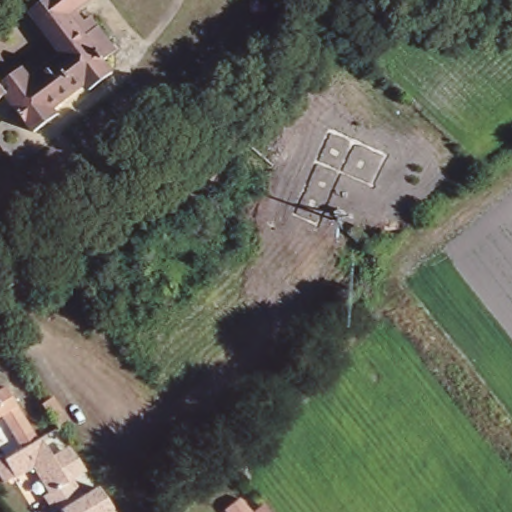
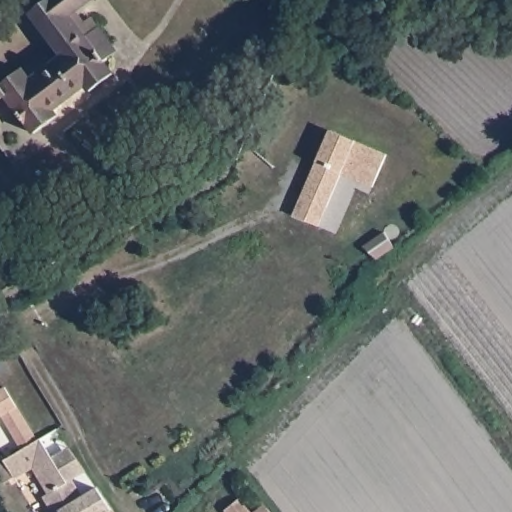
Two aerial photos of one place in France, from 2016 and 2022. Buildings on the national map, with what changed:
unchanged [(26,18),(49,0),(89,0),(91,2),(64,22),(74,35),(87,24),(112,58),(99,69),(107,79),(83,97),(79,92),(50,114),(54,119),(31,137),(22,126),(20,127),(11,115),(13,114),(3,100),(0,103),(0,87),(16,74),(49,49),(26,18)]
new [(330,130),(387,154),(372,187),(341,173),(318,226),(293,215),(330,130)]
unchanged [(397,245),(396,246),(377,259),(363,245),(382,233),(397,245)]
unchanged [(2,413),(0,415),(0,389),(7,385),(12,395),(41,441),(40,441),(25,450),(2,413)]
unchanged [(66,423),(57,428),(41,403),(51,397),(66,423)]
unchanged [(75,476),(87,494),(58,512),(54,512),(44,495),(51,491),(35,466),(14,479),(8,470),(0,475),(0,455),(2,454),(7,461),(13,457),(25,450),(40,441),(41,441),(45,438),(70,479),(75,476)]
unchanged [(70,479),(52,451),(67,441),(85,469),(75,476),(70,479)]
unchanged [(116,512),(63,512),(62,509),(87,494),(85,491),(97,484),(116,512)]
unchanged [(235,499),(245,512),(221,512),(220,511),(235,499)]
unchanged [(260,506),(264,512),(252,512),(259,507),(260,506)]

